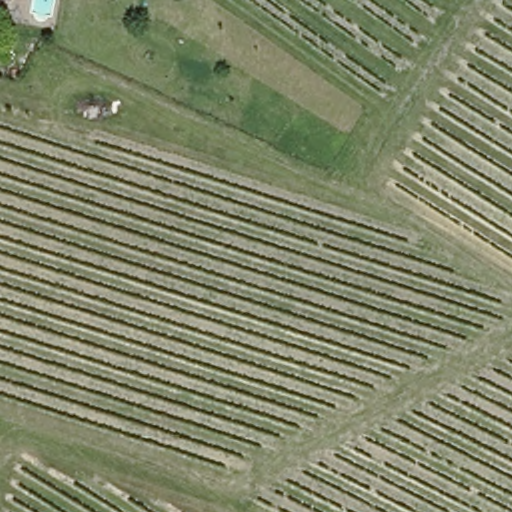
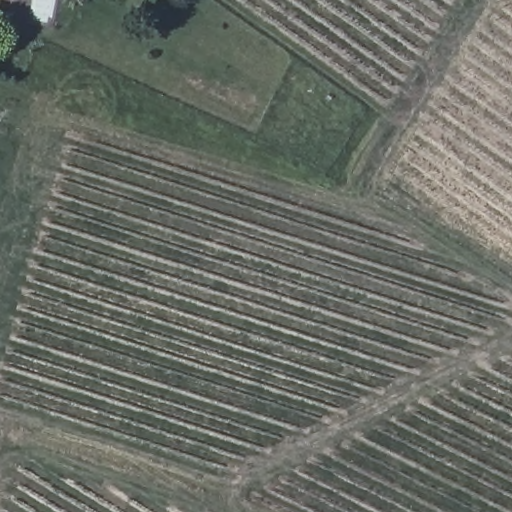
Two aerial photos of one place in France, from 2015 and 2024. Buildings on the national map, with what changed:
unchanged [(0,1),(0,0),(6,0),(5,2),(0,1)]

